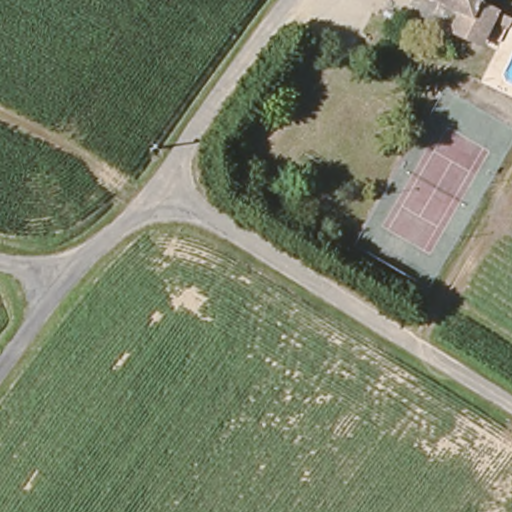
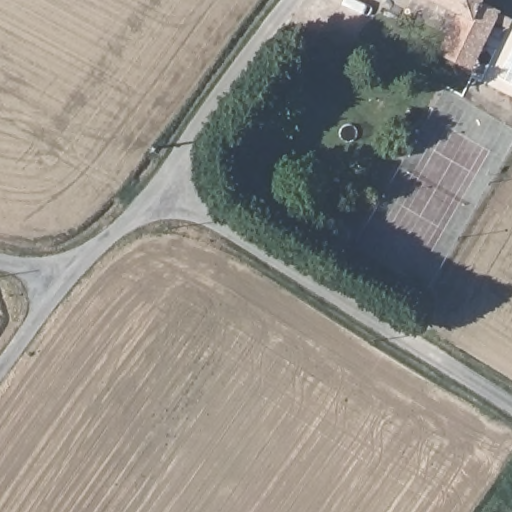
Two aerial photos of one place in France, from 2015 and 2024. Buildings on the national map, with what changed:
unchanged [(473,21),(462,16),(429,0),(485,0),(482,5),(473,21)]
unchanged [(501,15),(486,50),(454,35),(462,16),(473,21),(482,5),(501,15)]

